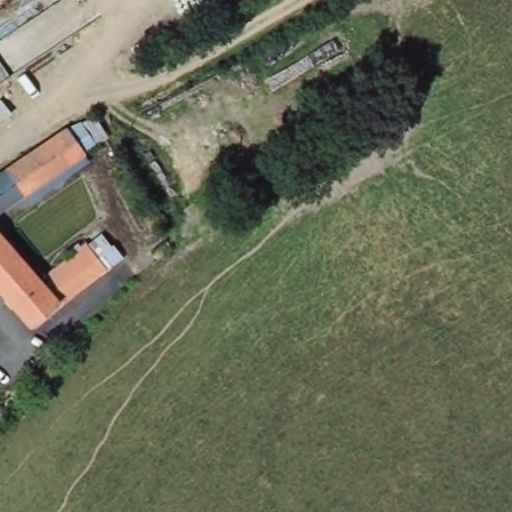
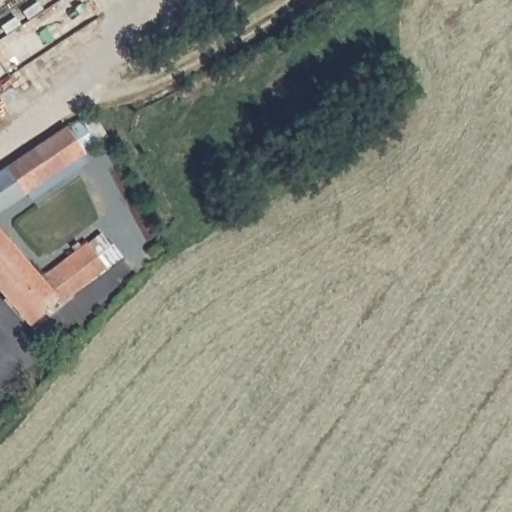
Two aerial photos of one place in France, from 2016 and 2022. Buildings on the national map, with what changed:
unchanged [(81,121),(96,144),(0,209),(0,172),(65,128),(81,121)]
unchanged [(58,305),(55,300),(30,323),(0,289),(0,233),(38,280),(99,235),(112,245),(121,257),(70,295),(58,305)]

